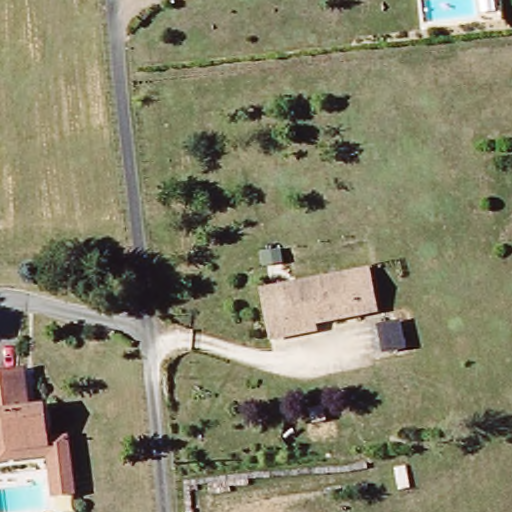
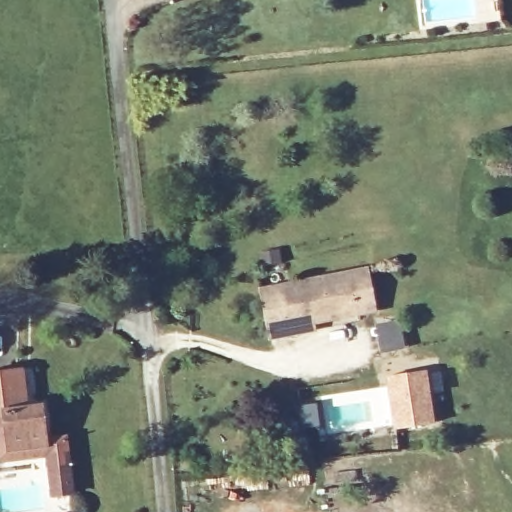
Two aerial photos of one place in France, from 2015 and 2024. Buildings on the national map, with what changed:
unchanged [(260,288),(351,270),(359,312),(312,321),(313,328),(270,336),(260,288)]
unchanged [(28,403),(44,401),(49,442),(69,439),(75,496),(56,499),(50,454),(45,455),(0,460),(0,372),(24,369),(28,403)]
new [(423,371),(430,424),(393,429),(385,376),(423,371)]

